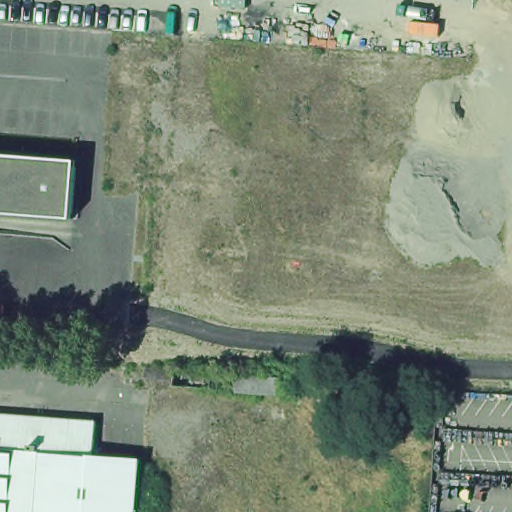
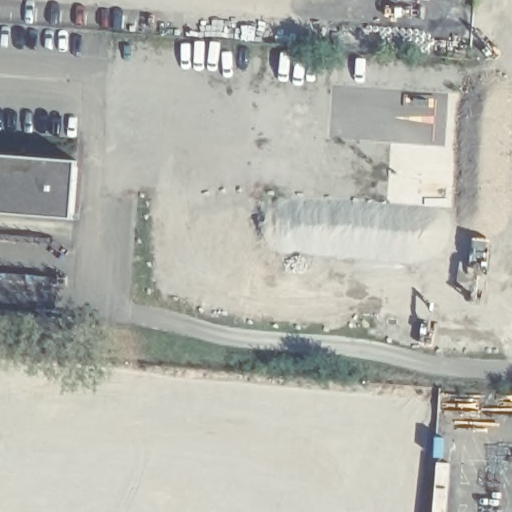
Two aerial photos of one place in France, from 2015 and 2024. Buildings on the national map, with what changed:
demolished [(145,28),(134,189),(100,186),(111,26),(145,28)]
unchanged [(68,166),(64,225),(0,220),(0,160),(68,166)]
demolished [(32,458),(28,512),(0,512),(0,418),(35,420),(33,449),(32,458)]
demolished [(72,423),(68,461),(32,458),(33,449),(35,420),(72,423)]
demolished [(72,423),(90,424),(88,460),(134,464),(131,512),(28,512),(32,458),(68,461),(72,423)]

